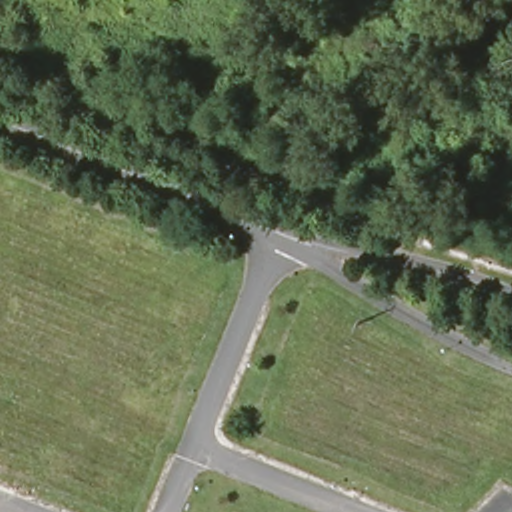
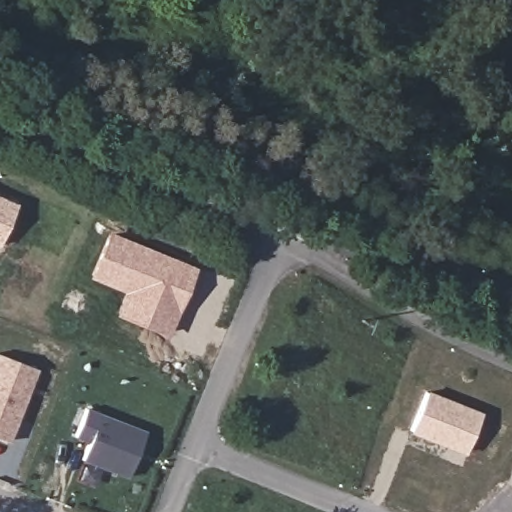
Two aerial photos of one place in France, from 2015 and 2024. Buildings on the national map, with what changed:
new [(0,245),(0,196),(17,203),(0,245)]
new [(196,267),(169,336),(114,315),(124,291),(89,278),(108,231),(196,267)]
new [(37,369),(10,442),(0,438),(0,355),(37,369)]
new [(481,412),(464,455),(409,433),(426,390),(481,412)]
new [(86,410),(145,432),(128,477),(83,461),(90,443),(76,437),(86,410)]

